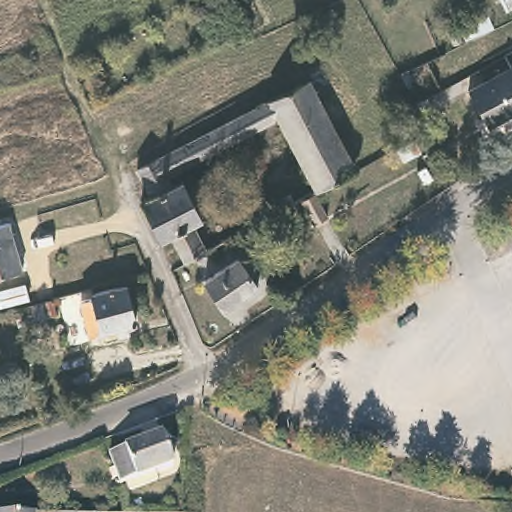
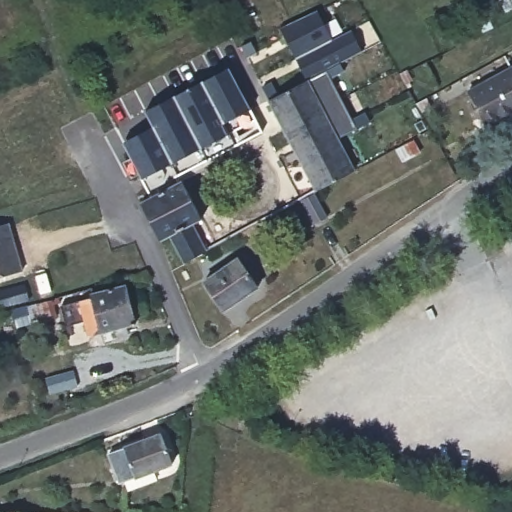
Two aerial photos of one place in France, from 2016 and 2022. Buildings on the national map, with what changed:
new [(317,10),(332,39),(350,29),(362,51),(340,62),(343,70),(331,77),(352,119),(365,112),(370,120),(338,138),(305,75),(280,26),(317,10)]
unchanged [(512,70),(512,109),(485,125),(466,92),(510,66),(512,70)]
new [(250,108),(262,131),(169,182),(166,179),(161,169),(153,155),(135,165),(123,141),(154,126),(145,110),(230,68),(250,108)]
unchanged [(353,167),(316,188),(279,118),(266,94),(305,75),(353,167)]
unchanged [(424,156),(405,166),(399,156),(418,145),(424,156)]
unchanged [(166,179),(169,182),(181,176),(201,215),(190,221),(204,248),(184,258),(170,232),(159,238),(139,199),(149,193),(135,165),(153,155),(166,179)]
unchanged [(322,213),(309,220),(297,198),(310,191),(322,213)]
demolished [(293,200),(272,211),(268,204),(290,193),(293,200)]
unchanged [(0,276),(0,227),(10,224),(23,269),(0,276)]
unchanged [(252,291),(219,314),(197,284),(232,260),(252,291)]
unchanged [(134,318),(87,330),(85,321),(93,319),(90,308),(82,310),(79,296),(95,294),(94,289),(124,281),(134,318)]
unchanged [(0,305),(0,290),(19,284),(24,300),(0,305)]
unchanged [(52,315),(26,322),(23,309),(49,303),(52,315)]
unchanged [(125,487),(111,457),(147,443),(165,436),(166,441),(176,466),(125,487)]
unchanged [(10,512),(0,512),(0,485),(0,486),(10,512)]

